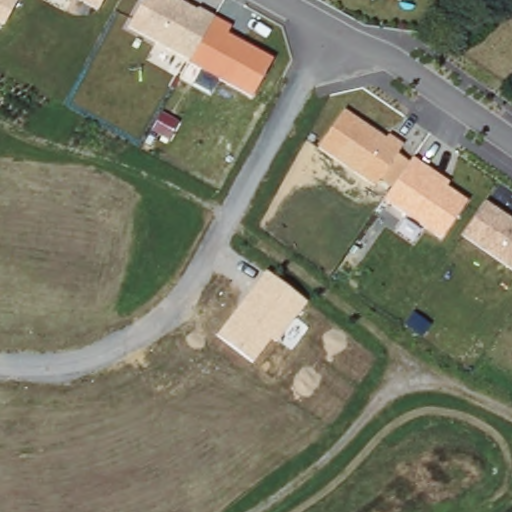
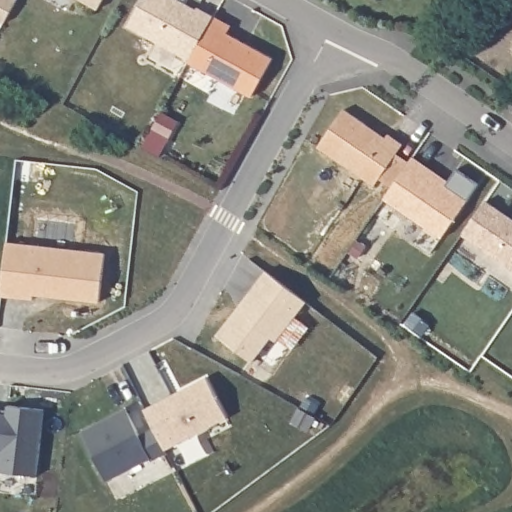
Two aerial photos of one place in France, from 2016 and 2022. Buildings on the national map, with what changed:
unchanged [(6,22),(0,20),(0,0),(18,0),(6,22)]
unchanged [(100,7),(86,0),(104,0),(100,7)]
unchanged [(256,94),(191,60),(192,57),(130,24),(143,0),(185,0),(197,7),(200,4),(231,23),(226,31),(275,56),(256,94)]
unchanged [(342,110),(386,140),(392,133),(404,143),(397,155),(409,163),(413,156),(451,181),(447,186),(469,202),(442,237),(383,198),(390,187),(378,179),(374,186),(317,146),(342,110)]
unchanged [(512,219),(512,269),(462,235),(486,201),(512,219)]
new [(33,300),(1,296),(7,242),(105,253),(100,304),(62,300),(34,296),(33,300)]
unchanged [(305,300),(275,342),(271,339),(251,364),(216,336),(265,271),(305,300)]
new [(207,377),(229,417),(167,450),(146,409),(207,377)]
new [(1,409),(7,410),(8,405),(45,409),(37,475),(0,471),(0,409),(1,409)]
new [(127,408),(153,458),(109,481),(82,431),(127,408)]

